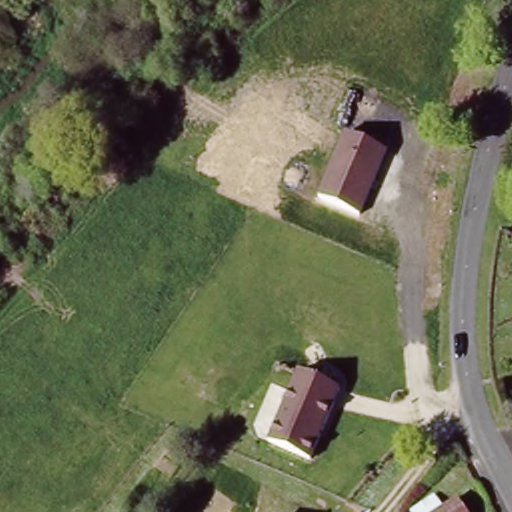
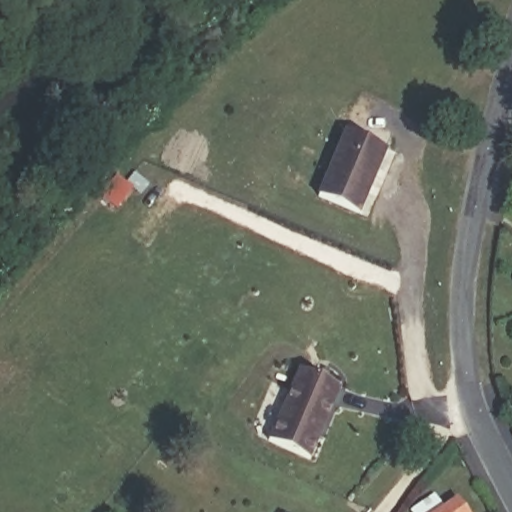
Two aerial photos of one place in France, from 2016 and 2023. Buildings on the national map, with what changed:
unchanged [(349,131),(386,150),(358,212),(321,193),(349,131)]
unchanged [(296,370),(338,385),(313,458),(269,443),(296,370)]
unchanged [(477,512),(438,512),(462,492),(477,512)]

